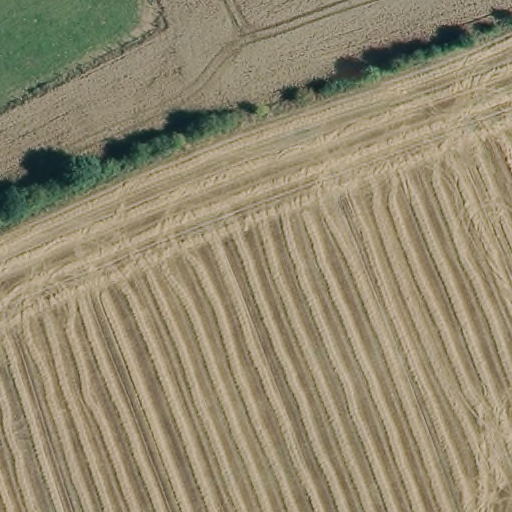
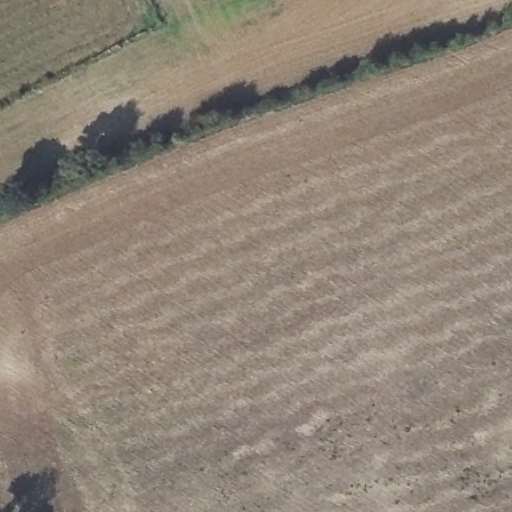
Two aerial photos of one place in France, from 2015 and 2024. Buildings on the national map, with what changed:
[]

